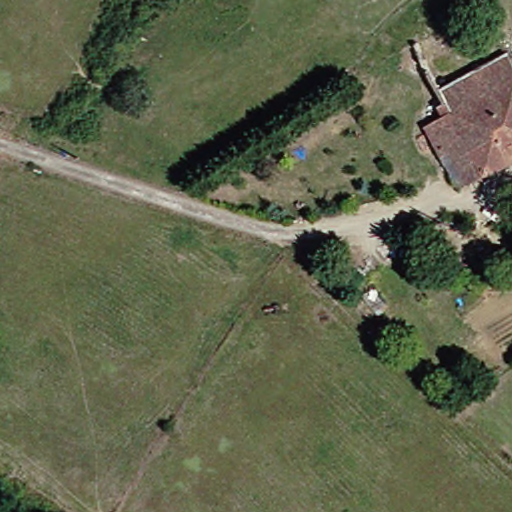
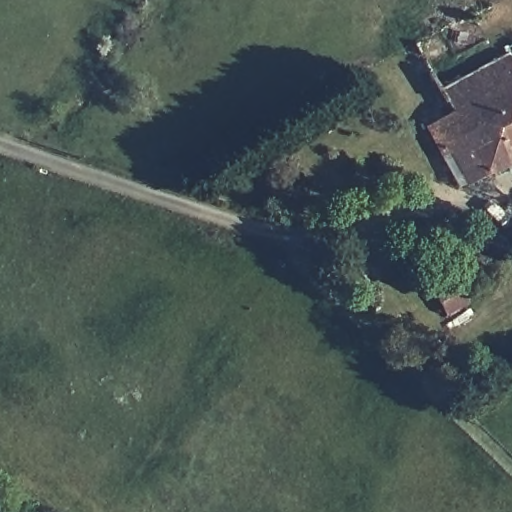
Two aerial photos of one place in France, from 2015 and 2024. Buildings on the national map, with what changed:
unchanged [(429,129),(447,117),(442,108),(453,103),(445,89),(511,53),(512,55),(512,163),(471,184),(454,154),(444,159),(429,129)]

